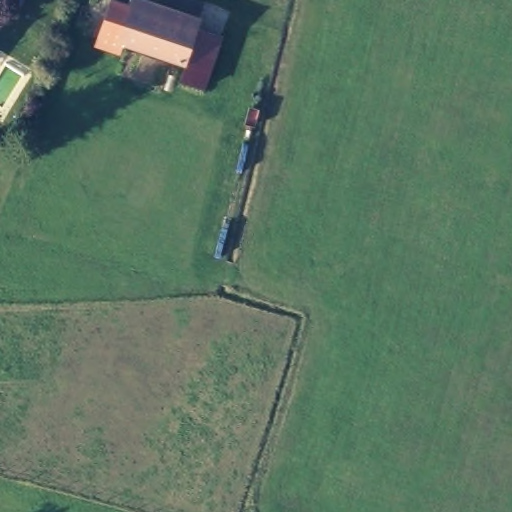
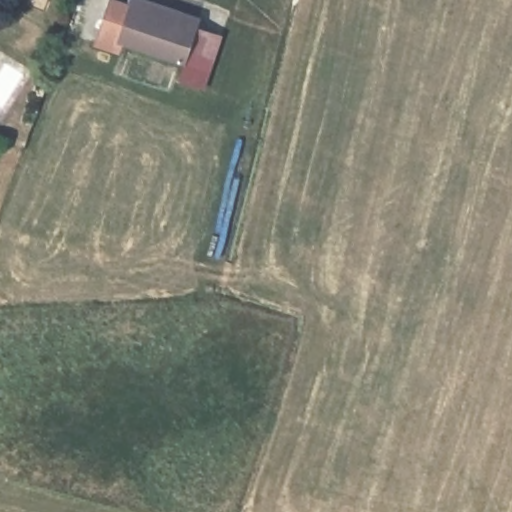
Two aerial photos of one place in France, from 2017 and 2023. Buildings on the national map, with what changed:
unchanged [(189,24),(179,61),(119,42),(132,6),(189,24)]
unchanged [(194,26),(225,36),(207,94),(180,84),(182,64),(194,26)]

